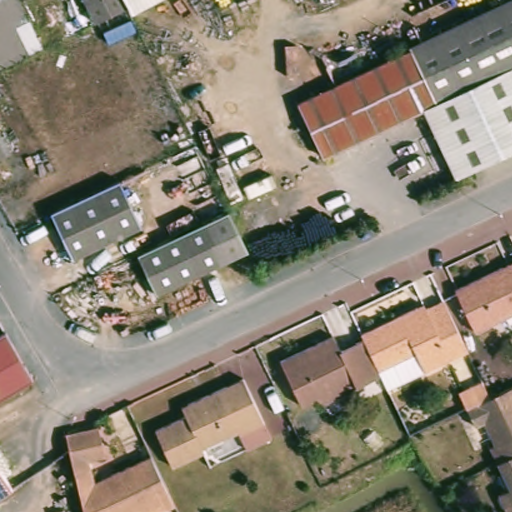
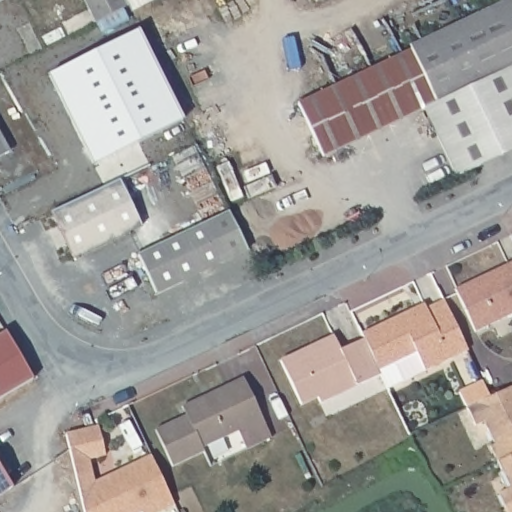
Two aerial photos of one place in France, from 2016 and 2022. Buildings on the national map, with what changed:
unchanged [(94,23),(82,0),(127,0),(130,5),(94,23)]
unchanged [(131,4),(130,5),(127,0),(155,0),(135,10),(131,4)]
unchanged [(455,173),(423,106),(324,154),(298,100),(490,11),(512,1),(512,146),(455,173)]
new [(131,24),(176,114),(86,159),(41,68),(131,24)]
unchanged [(0,156),(0,143),(5,153),(0,156)]
unchanged [(117,179),(141,227),(73,258),(50,212),(117,179)]
unchanged [(227,210),(246,248),(153,291),(135,254),(227,210)]
unchanged [(512,266),(512,320),(483,334),(462,291),(512,266)]
unchanged [(391,364),(376,372),(360,339),(357,334),(415,304),(419,309),(441,298),(466,349),(423,372),(400,382),(391,364)]
unchanged [(22,354),(27,363),(37,379),(6,396),(0,400),(0,338),(10,332),(22,354)]
unchanged [(330,335),(337,349),(360,339),(376,372),(378,377),(318,406),(314,398),(298,406),(275,361),(330,335)]
unchanged [(458,387),(482,376),(490,393),(512,382),(512,512),(498,512),(498,511),(508,506),(487,466),(480,452),(487,448),(476,427),(466,432),(455,410),(467,404),(458,387)]
unchanged [(195,414),(190,404),(241,380),(265,427),(240,439),(236,433),(207,448),(210,454),(175,471),(157,434),(186,419),(195,414)]
unchanged [(59,440),(92,431),(99,459),(83,464),(89,487),(135,466),(158,512),(77,512),(63,456),(59,440)]
unchanged [(4,499),(0,501),(0,457),(20,488),(4,499)]

